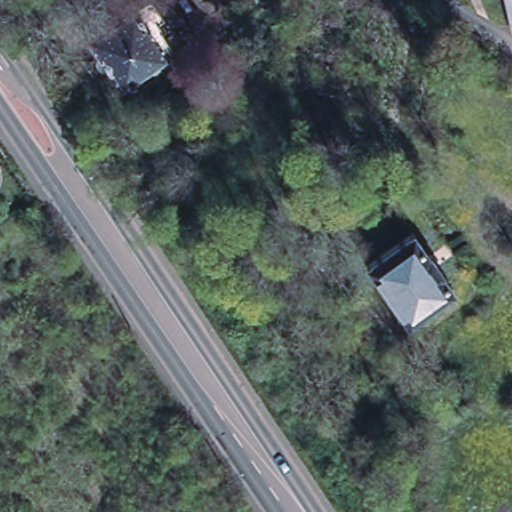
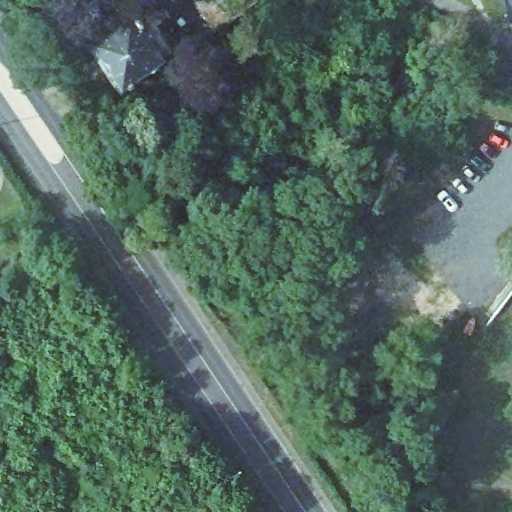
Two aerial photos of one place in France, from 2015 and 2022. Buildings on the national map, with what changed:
unchanged [(135,5),(143,0),(152,0),(163,16),(157,20),(162,28),(160,29),(172,48),(166,52),(168,56),(120,88),(85,34),(133,2),(135,5)]
unchanged [(213,29),(194,0),(250,0),(252,3),(213,29)]
unchanged [(508,21),(503,0),(512,0),(512,20),(508,21)]
demolished [(412,231),(452,289),(407,322),(367,263),(412,231)]

